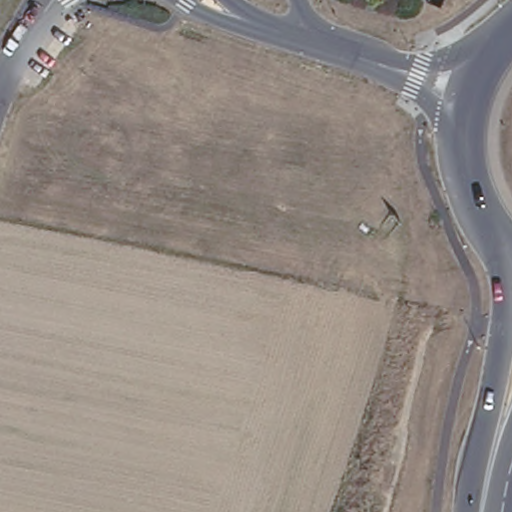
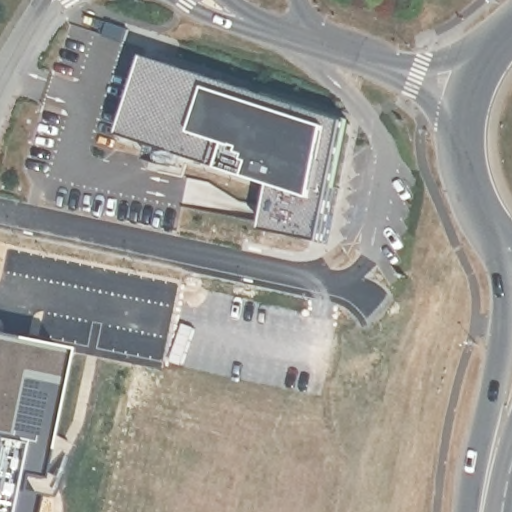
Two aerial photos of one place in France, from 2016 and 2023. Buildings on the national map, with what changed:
new [(358,120),(333,235),(273,222),(279,183),(129,137),(153,52),(358,120)]
new [(24,512),(0,512),(0,339),(57,351),(24,512)]

